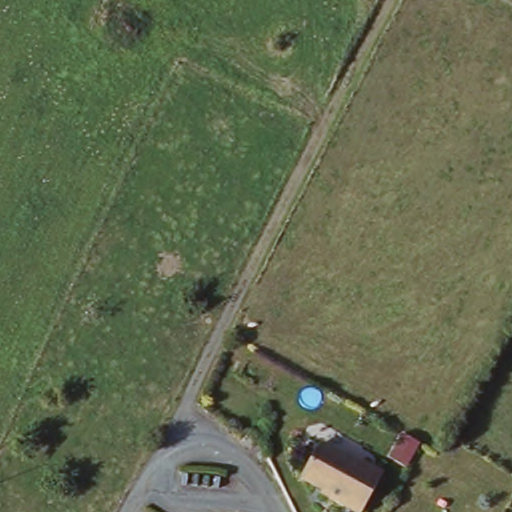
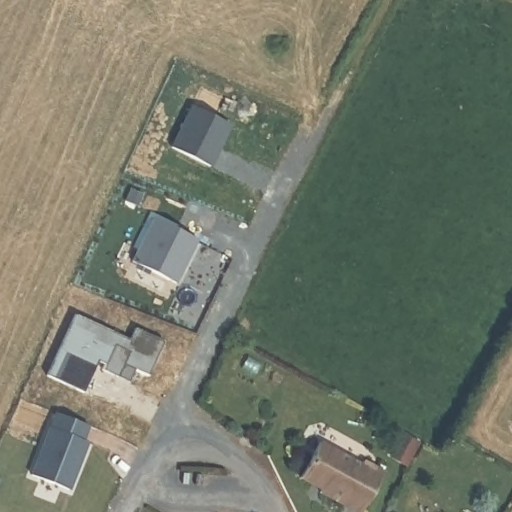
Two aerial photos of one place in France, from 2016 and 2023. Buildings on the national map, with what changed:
new [(177,283),(131,260),(153,218),(197,239),(177,283)]
new [(148,376),(122,363),(117,375),(103,369),(104,365),(95,360),(82,391),(46,375),(75,315),(130,339),(136,328),(163,342),(148,376)]
new [(89,426),(84,441),(87,443),(70,490),(29,474),(54,413),(89,426)]
unchanged [(365,460),(386,471),(361,512),(357,512),(300,480),(321,440),(362,463),(365,460)]

